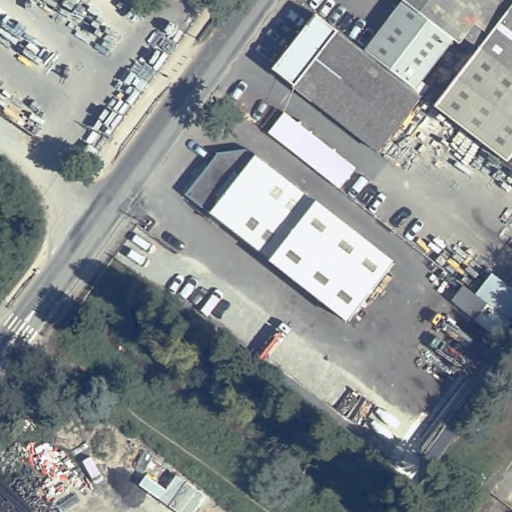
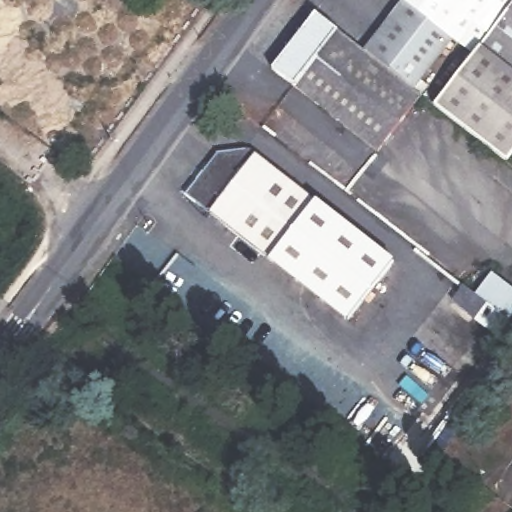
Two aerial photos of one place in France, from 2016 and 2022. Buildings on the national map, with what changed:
unchanged [(512,10),(492,36),(477,56),(457,41),(441,62),(417,93),(387,70),(367,55),(392,25),(408,3),(404,0),(512,0),(512,10)]
unchanged [(437,108),(461,77),(477,56),(492,36),(512,10),(512,158),(508,163),(437,108)]
unchanged [(417,93),(425,99),(383,153),(277,72),(320,18),(367,55),(387,70),(417,93)]
unchanged [(285,109),(333,147),(316,168),(269,132),(285,109)]
unchanged [(219,158),(220,157),(223,156),(226,155),(228,154),(232,154),(235,153),(237,153),(241,153),(243,153),(247,154),(250,155),(253,156),(255,157),(256,158),(260,161),(396,265),(352,324),(188,198),(219,158)]
unchanged [(512,327),(502,340),(478,322),(491,303),(482,296),(496,274),(512,287),(512,327)]
unchanged [(53,372),(47,381),(42,376),(48,368),(53,372)]

